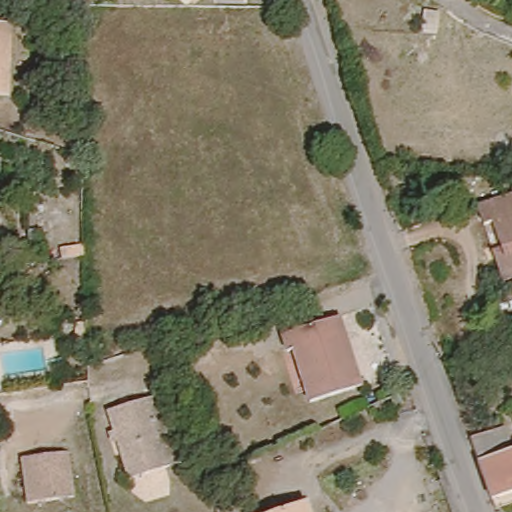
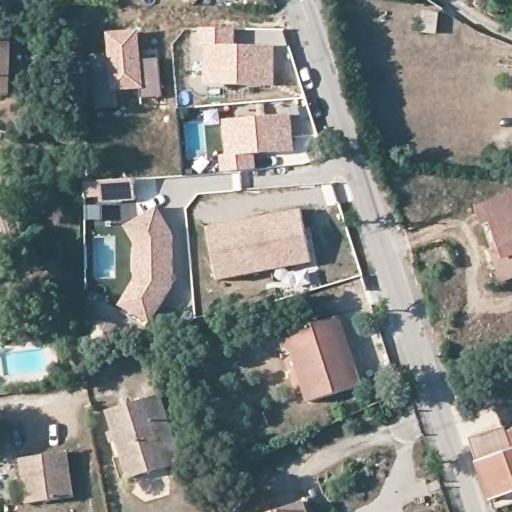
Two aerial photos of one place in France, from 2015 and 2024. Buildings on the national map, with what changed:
new [(236,27),(236,44),(274,44),(275,84),(205,86),(201,28),(236,27)]
unchanged [(12,100),(0,100),(0,28),(8,28),(12,100)]
new [(159,59),(163,97),(141,99),(139,88),(118,89),(119,103),(96,105),(91,57),(109,55),(108,34),(139,32),(143,60),(159,59)]
new [(223,120),(291,115),(296,151),(256,155),(258,168),(241,171),(228,172),(222,172),(221,156),(225,155),(223,120)]
new [(136,182),(138,202),(103,206),(100,186),(136,182)]
unchanged [(512,193),(512,276),(502,279),(476,205),(512,193)]
new [(138,282),(138,246),(127,229),(158,210),(174,236),(175,287),(154,327),(123,310),(138,282)]
new [(303,210),(313,262),(220,282),(209,230),(303,210)]
unchanged [(296,352),(286,355),(281,337),(331,321),(340,318),(362,385),(351,388),(311,401),(296,352)]
unchanged [(181,466),(128,481),(109,413),(162,398),(181,465),(181,466)]
unchanged [(491,500),(479,464),(470,440),(508,427),(512,451),(512,504),(494,509),(491,500)]
unchanged [(66,447),(76,492),(28,502),(18,458),(66,447)]
unchanged [(229,501),(237,500),(239,512),(231,512),(229,501)]
unchanged [(304,510),(311,508),(313,512),(299,512),(304,510)]

